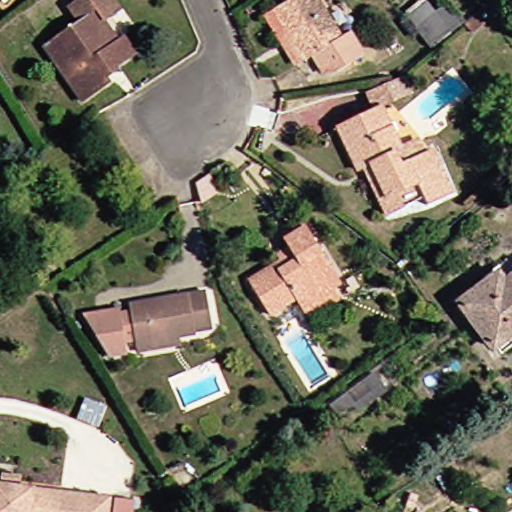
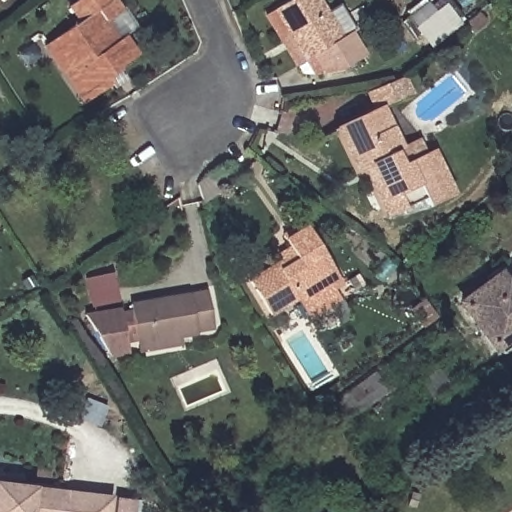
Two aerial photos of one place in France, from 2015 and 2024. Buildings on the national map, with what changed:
unchanged [(54,37),(76,21),(67,6),(76,0),(109,0),(114,8),(104,15),(118,35),(130,52),(111,65),(113,67),(100,77),(104,81),(79,100),(59,71),(41,46),(54,37)]
unchanged [(361,60),(337,73),(319,75),(309,59),(301,64),(272,11),(292,0),(316,0),(337,39),(347,34),(361,60)]
unchanged [(419,30),(404,41),(392,26),(407,13),(426,0),(429,0),(434,7),(447,0),(462,21),(428,46),(419,30)]
unchanged [(359,168),(348,143),(359,139),(351,119),(382,105),(403,149),(408,160),(434,149),(454,193),(428,205),(423,196),(387,212),(371,177),(366,165),(359,168)]
unchanged [(293,300),(289,293),(264,310),(244,275),(278,255),(289,249),(278,230),(299,219),(324,261),(333,276),(325,281),(329,288),(298,306),(293,300)]
unchanged [(499,286),(493,278),(482,285),(478,280),(501,264),(506,271),(512,266),(512,277),(499,286)]
unchanged [(493,278),(499,286),(512,277),(512,333),(489,350),(487,351),(454,305),(482,285),(493,278)]
unchanged [(133,352),(131,345),(130,341),(121,342),(123,353),(104,356),(79,315),(115,310),(116,317),(126,316),(125,306),(202,293),(208,329),(193,331),(193,336),(176,338),(177,345),(133,352)]
unchanged [(512,333),(512,346),(496,358),(489,350),(512,333)]
unchanged [(329,403),(345,392),(374,373),(385,391),(358,410),(353,404),(337,415),(329,403)]
unchanged [(17,486),(108,499),(106,512),(0,512),(0,474),(19,476),(17,486)]

